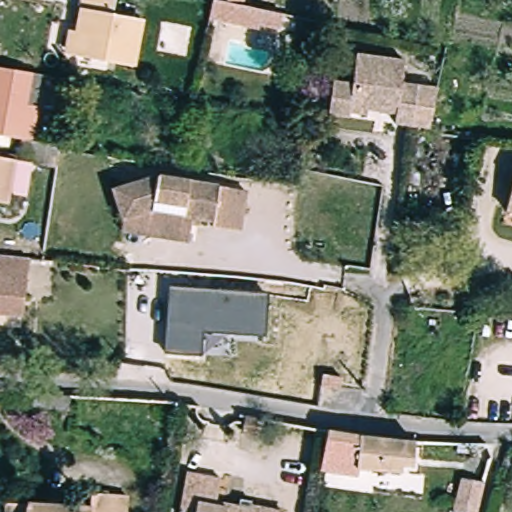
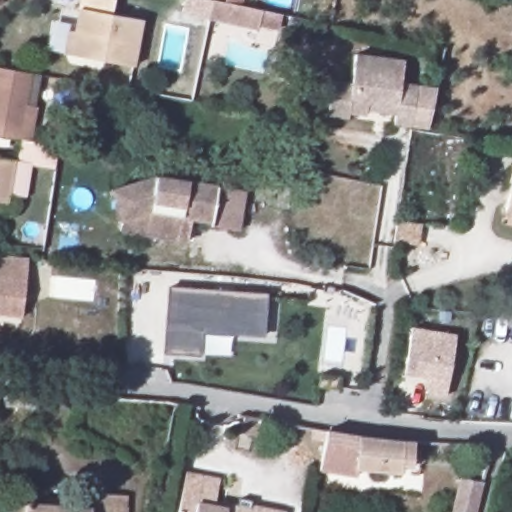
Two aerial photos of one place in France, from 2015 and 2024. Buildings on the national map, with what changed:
unchanged [(77,31),(83,0),(115,0),(113,13),(142,19),(134,65),(73,53),(64,51),(69,30),(77,31)]
unchanged [(208,26),(181,19),(186,2),(211,8),(226,11),(227,0),(245,0),(242,14),(261,18),(264,18),(281,22),(278,37),(258,33),(258,36),(208,26)]
unchanged [(322,110),(323,107),(328,77),(346,79),(348,65),(351,50),(397,57),(394,74),(394,78),(425,83),(419,120),(384,115),(386,100),(359,96),(356,107),(344,106),(344,110),(343,113),(322,110)]
unchanged [(20,134),(0,131),(0,64),(30,70),(20,134)]
unchanged [(54,150),(21,145),(23,134),(56,140),(54,150)]
unchanged [(8,199),(0,198),(0,155),(15,157),(8,199)]
unchanged [(118,179),(162,167),(250,185),(241,225),(215,221),(216,215),(153,203),(128,210),(118,179)]
unchanged [(507,218),(510,207),(512,199),(512,220),(507,218)]
unchanged [(125,223),(128,210),(153,203),(216,215),(215,221),(211,239),(125,223)]
unchanged [(188,245),(187,254),(176,254),(175,252),(176,244),(188,245)]
unchanged [(0,253),(16,256),(30,258),(23,299),(18,327),(0,324),(0,253)]
unchanged [(446,260),(441,260),(442,253),(447,253),(446,260)]
unchanged [(203,332),(201,356),(163,353),(168,286),(268,293),(264,336),(203,332)]
new [(428,378),(403,375),(411,327),(455,334),(446,397),(426,394),(428,378)]
unchanged [(321,374),(340,376),(338,387),(320,384),(321,374)]
unchanged [(344,377),(359,379),(357,390),(342,387),(344,377)]
unchanged [(0,407),(0,391),(31,393),(50,394),(50,408),(30,408),(0,407)]
unchanged [(259,438),(241,434),(243,416),(263,419),(259,438)]
unchanged [(357,471),(320,466),(326,424),(360,430),(358,465),(357,471)]
unchanged [(412,460),(400,459),(399,468),(358,465),(360,430),(412,435),(412,460)]
unchanged [(183,473),(217,479),(213,501),(236,505),(238,499),(251,502),(250,507),(275,512),(177,512),(183,473)]
unchanged [(454,504),(460,478),(484,482),(477,508),(454,504)]
unchanged [(13,499),(98,503),(100,488),(119,489),(135,491),(134,512),(12,512),(13,499)]

